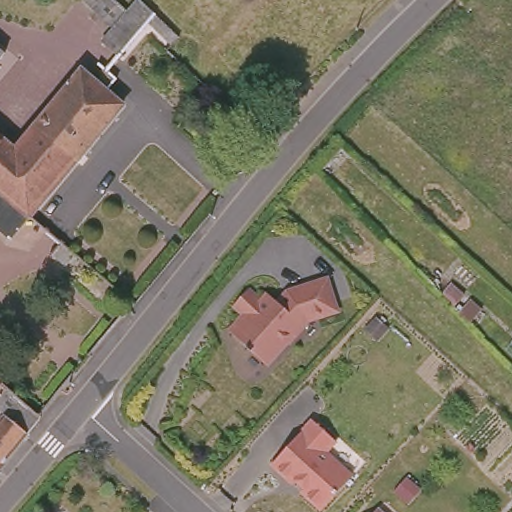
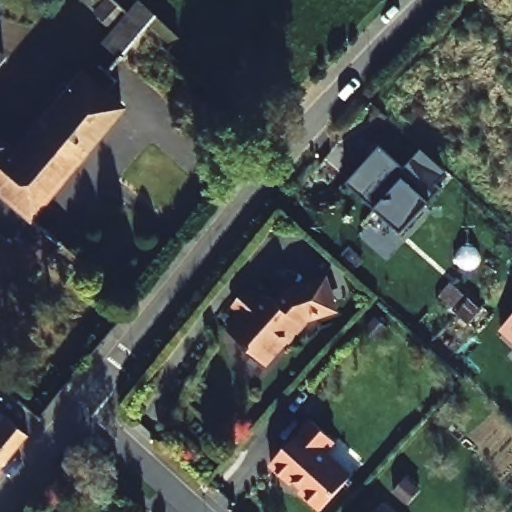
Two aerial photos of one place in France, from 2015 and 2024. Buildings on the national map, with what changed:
unchanged [(112,26),(78,0),(117,0),(121,4),(124,0),(145,0),(157,11),(122,62),(100,44),(112,26)]
unchanged [(82,65),(97,79),(122,100),(114,109),(27,212),(0,189),(0,133),(15,146),(82,65)]
new [(406,167),(422,149),(447,172),(437,185),(442,189),(430,202),(403,231),(377,207),(349,183),(381,146),(406,167)]
unchanged [(9,234),(0,226),(0,189),(27,212),(9,234)]
unchanged [(232,330),(247,314),(236,305),(252,287),(267,301),(274,295),(282,302),(292,291),(327,280),(337,308),(302,320),(302,330),(296,337),(290,338),(267,361),(232,330)]
new [(501,330),(512,318),(512,340),(501,330)]
unchanged [(0,398),(0,385),(6,390),(0,398)]
unchanged [(17,400),(40,418),(26,434),(0,465),(0,420),(5,415),(17,400)]
unchanged [(337,441),(326,453),(352,478),(322,512),(321,512),(301,493),(302,491),(294,483),(292,485),(270,465),(312,419),(337,441)]
unchanged [(378,512),(371,512),(374,508),(378,512)]

